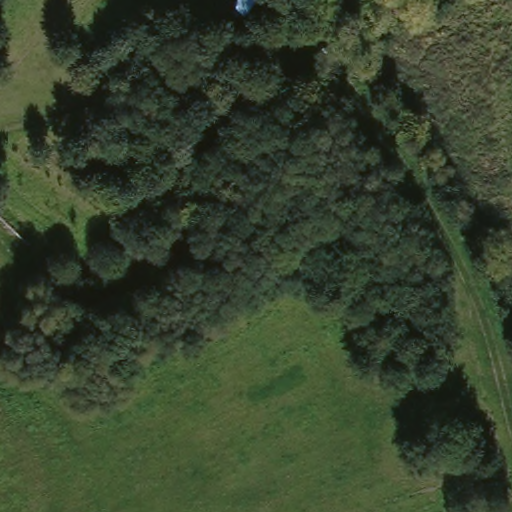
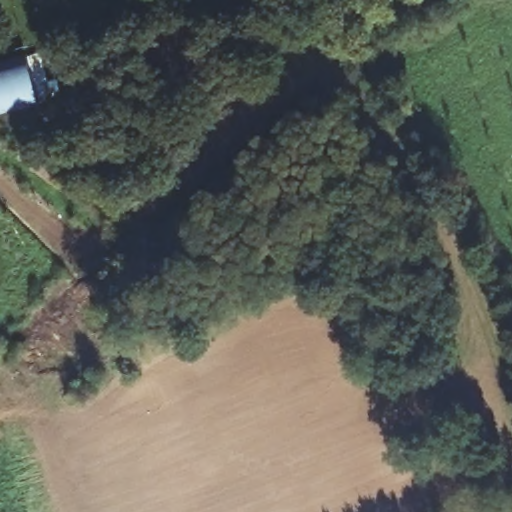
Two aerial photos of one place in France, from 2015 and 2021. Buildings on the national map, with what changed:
new [(38,103),(0,112),(0,62),(26,56),(38,103)]

